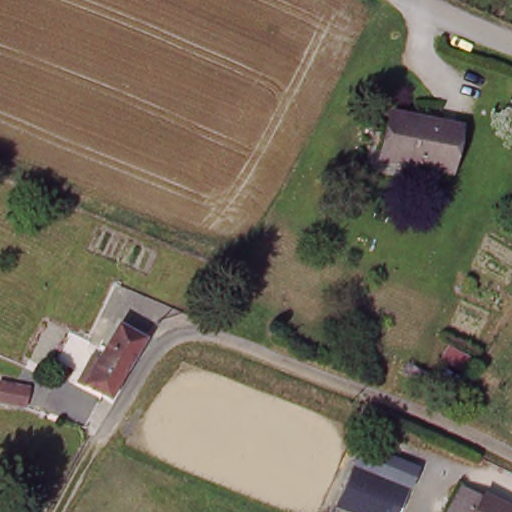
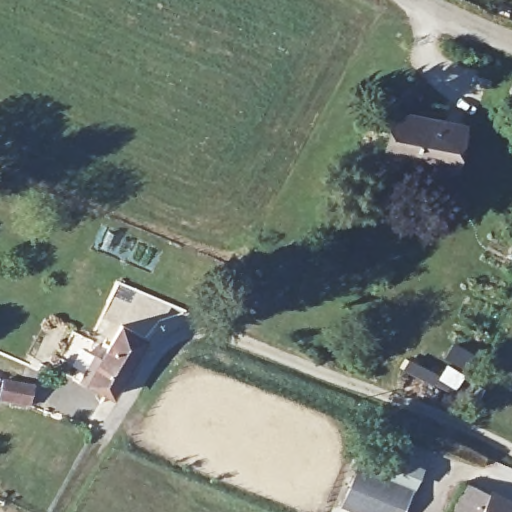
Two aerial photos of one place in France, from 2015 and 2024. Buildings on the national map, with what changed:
unchanged [(387,149),(397,112),(462,129),(450,174),(412,164),(385,156),(387,149)]
unchanged [(105,361),(125,324),(147,337),(117,394),(85,378),(97,357),(105,361)]
unchanged [(0,400),(0,379),(22,385),(19,405),(5,401),(0,400)]
unchanged [(416,483),(404,512),(367,512),(342,501),(360,460),(416,483)]
unchanged [(463,487),(487,499),(489,496),(512,508),(512,512),(450,512),(463,487)]

